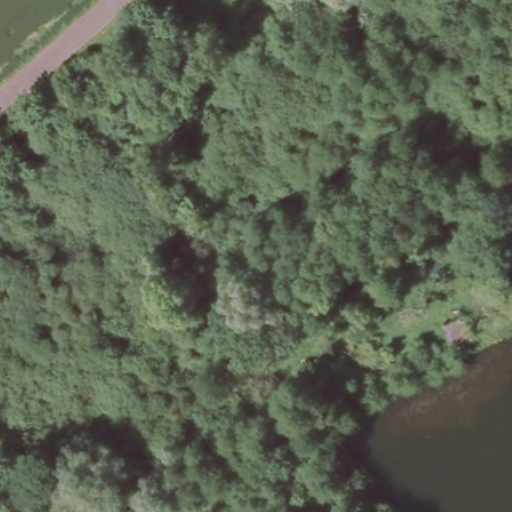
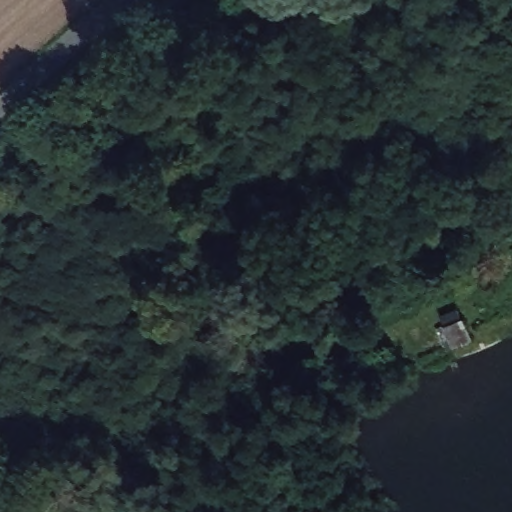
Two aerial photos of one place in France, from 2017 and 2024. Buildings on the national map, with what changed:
unchanged [(409,343),(375,360),(369,345),(404,328),(409,343)]

